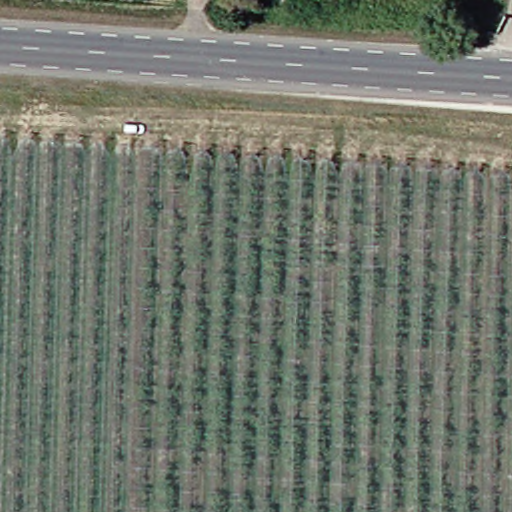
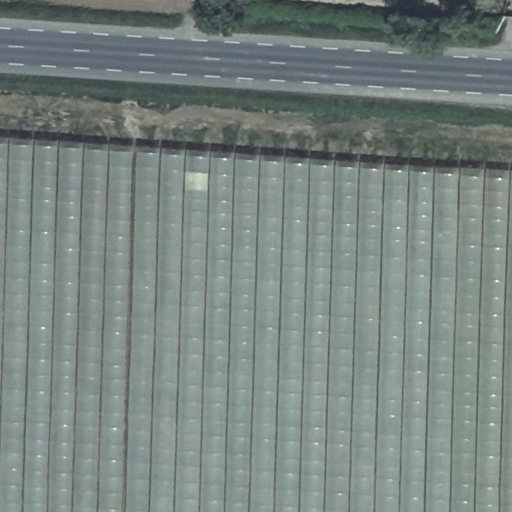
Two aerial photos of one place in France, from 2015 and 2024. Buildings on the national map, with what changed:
new [(0,512),(0,136),(512,173),(512,512),(0,512)]

